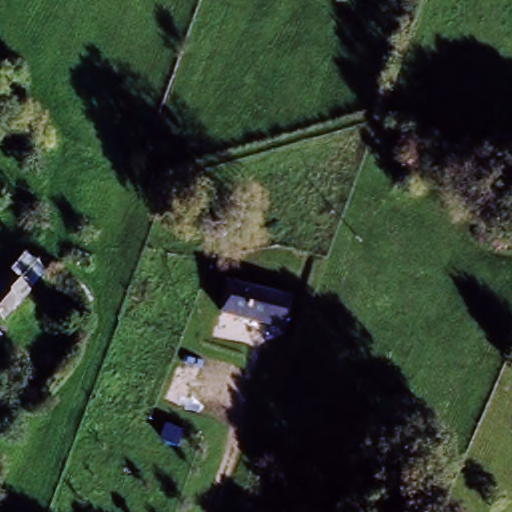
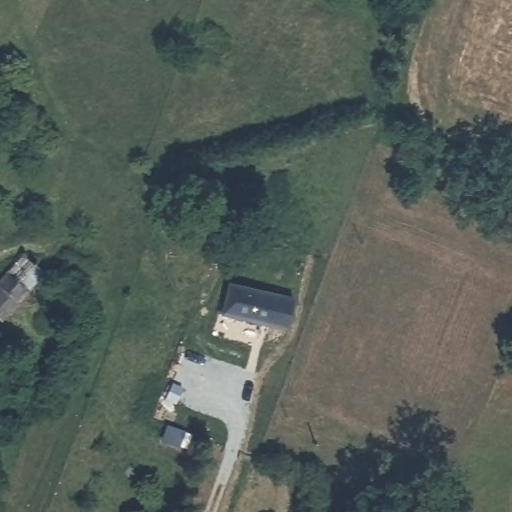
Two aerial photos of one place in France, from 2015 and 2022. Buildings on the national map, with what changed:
unchanged [(0,277),(19,254),(43,273),(5,322),(0,318),(0,277)]
unchanged [(292,299),(290,317),(277,317),(276,329),(222,320),(228,289),(292,299)]

